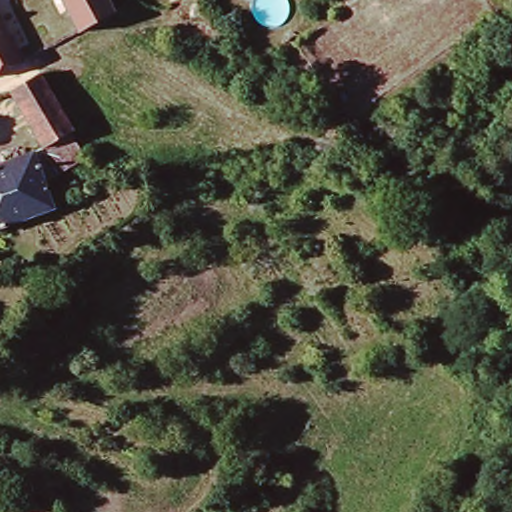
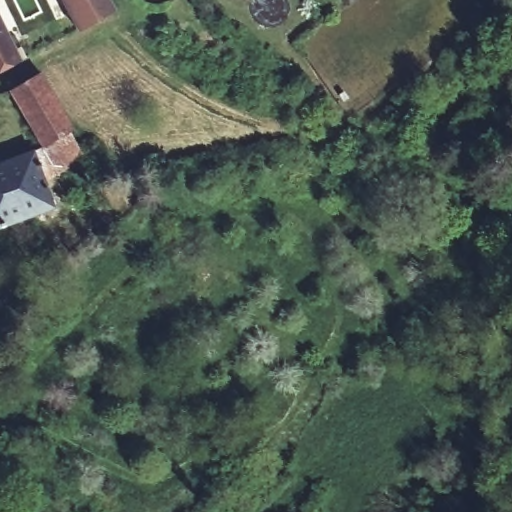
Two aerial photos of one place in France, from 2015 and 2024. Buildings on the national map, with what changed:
unchanged [(115,14),(84,32),(67,0),(107,0),(115,14)]
unchanged [(0,77),(0,20),(23,68),(0,77)]
unchanged [(54,176),(42,153),(10,98),(42,80),(74,134),(85,160),(54,176)]
unchanged [(0,232),(0,170),(35,157),(55,212),(0,232)]

